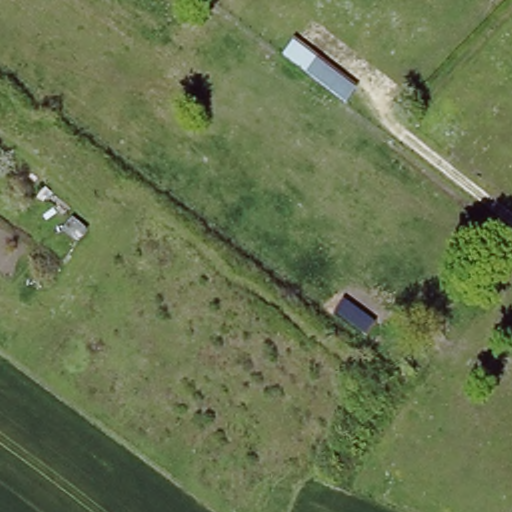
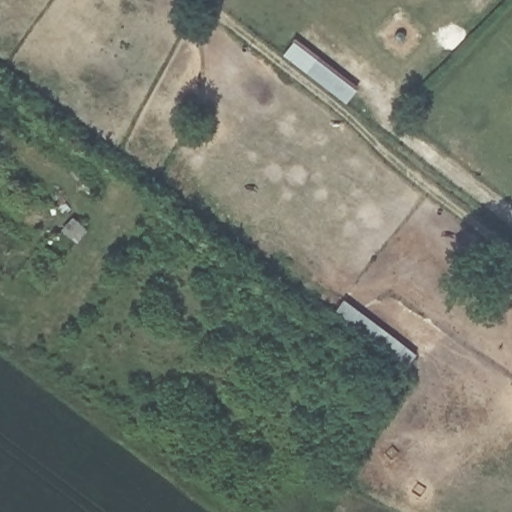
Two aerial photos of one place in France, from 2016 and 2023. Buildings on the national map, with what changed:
unchanged [(358,86),(346,101),(282,53),(294,36),(358,86)]
unchanged [(374,320),(364,337),(333,316),(344,299),(374,320)]

